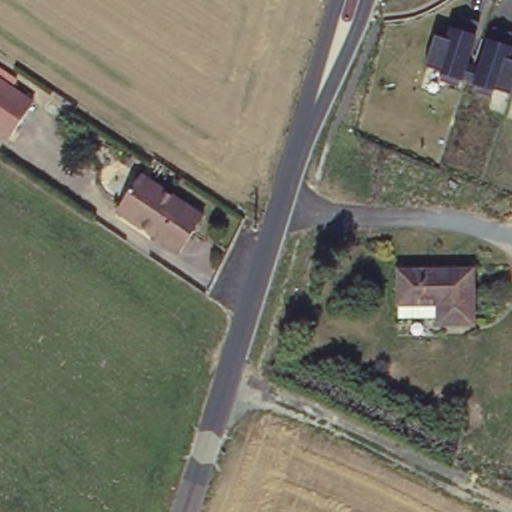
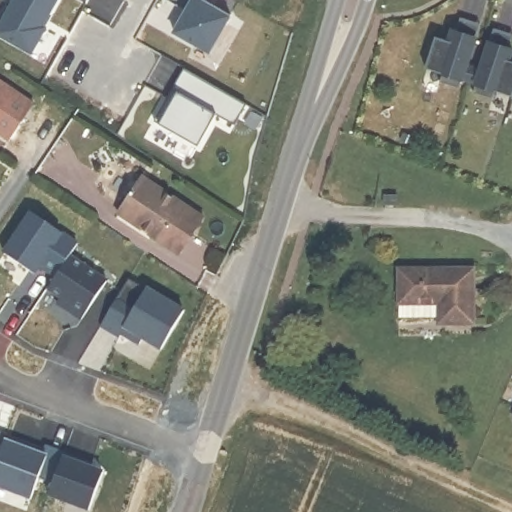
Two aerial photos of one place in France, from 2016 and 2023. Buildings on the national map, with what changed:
new [(44,26),(30,50),(0,34),(0,8),(3,3),(9,7),(13,0),(37,0),(50,7),(41,24),(44,26)]
new [(50,7),(37,0),(54,0),(50,7)]
new [(193,0),(208,0),(232,12),(212,50),(177,29),(193,0)]
unchanged [(496,85),(492,94),(472,87),(473,78),(460,75),(457,81),(438,76),(441,67),(425,62),(434,32),(471,44),(466,59),(481,63),(486,50),(512,59),(512,90),(496,85)]
new [(246,103),(236,121),(174,83),(182,67),(246,103)]
unchanged [(0,78),(28,96),(2,139),(0,138),(0,78)]
new [(234,124),(215,114),(197,145),(152,120),(166,96),(171,88),(174,83),(236,121),(234,124)]
unchanged [(512,91),(512,97),(510,96),(512,91)]
unchanged [(172,251),(108,208),(114,200),(132,171),(197,213),(177,243),(172,251)]
new [(77,244),(71,254),(52,284),(5,253),(31,214),(77,244)]
new [(107,279),(81,321),(57,305),(61,299),(47,291),(52,284),(71,254),(107,279)]
unchanged [(472,265),(472,320),(438,320),(438,315),(398,315),(398,266),(472,265)]
new [(147,288),(185,311),(160,352),(142,341),(139,347),(119,336),(117,340),(99,328),(129,280),(147,288)]
new [(512,408),(512,416),(509,415),(512,408)]
new [(42,443),(105,464),(104,469),(90,511),(47,497),(54,481),(41,476),(31,499),(0,488),(0,431),(41,447),(42,443)]

